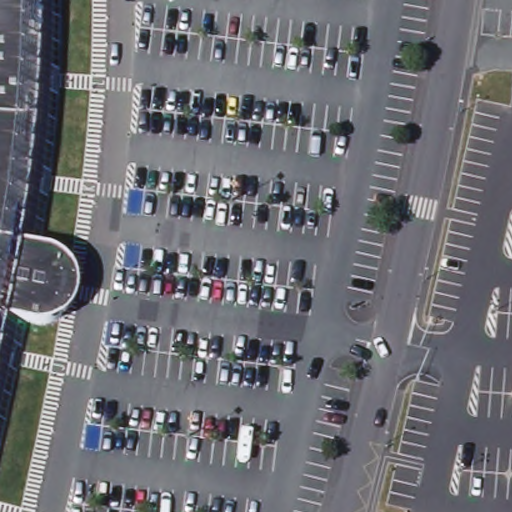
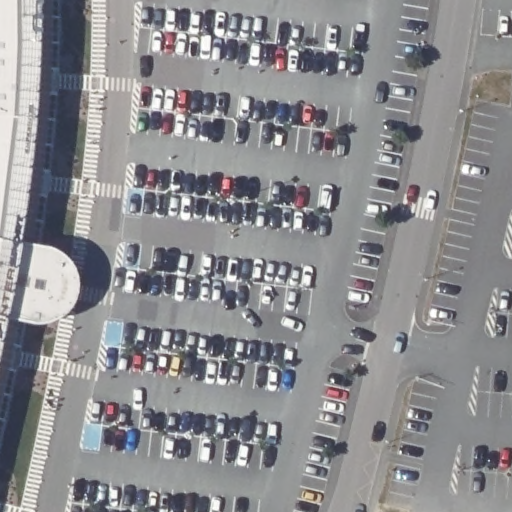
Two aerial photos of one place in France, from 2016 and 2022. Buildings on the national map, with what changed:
unchanged [(60,0),(60,3),(60,29),(59,63),(57,96),(54,140),(48,191),(40,244),(45,246),(51,249),(57,253),(65,260),(69,264),(66,279),(62,299),(59,315),(52,317),(42,319),(35,319),(26,318),(0,432),(0,0),(60,0)]

